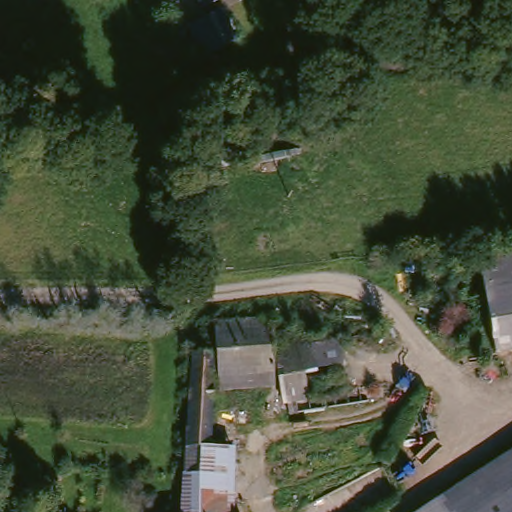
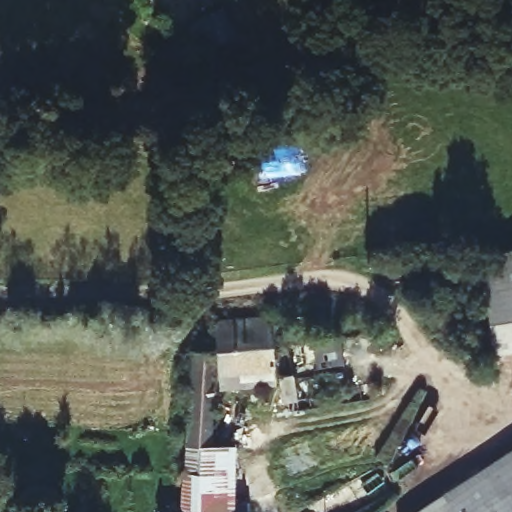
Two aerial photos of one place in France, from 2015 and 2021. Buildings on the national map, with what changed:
unchanged [(200,0),(221,0),(204,9),(200,0)]
unchanged [(235,8),(242,22),(239,27),(249,43),(226,52),(219,34),(215,30),(211,15),(235,8)]
unchanged [(228,139),(229,166),(204,167),(202,140),(228,139)]
unchanged [(512,250),(512,349),(494,352),(477,257),(512,250)]
unchanged [(279,387),(223,391),(220,351),(217,321),(274,317),(277,339),(278,350),(279,387)]
unchanged [(316,342),(322,368),(309,372),(314,397),(293,402),(289,402),(278,350),(316,342)]
unchanged [(196,352),(220,351),(219,367),(214,447),(190,446),(196,352)]
unchanged [(190,446),(214,447),(237,448),(237,512),(214,512),(208,512),(186,512),(190,446)]
unchanged [(512,455),(512,512),(430,512),(512,455)]

